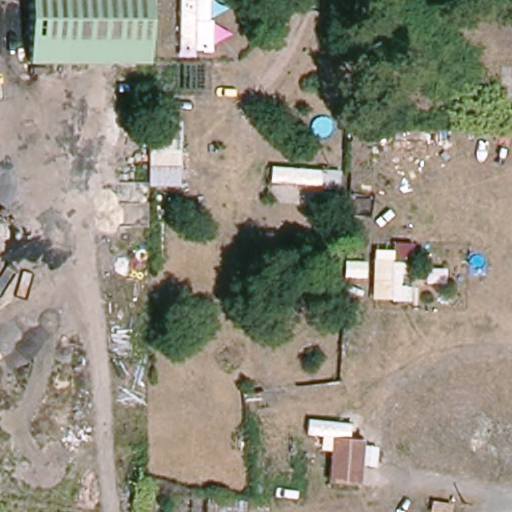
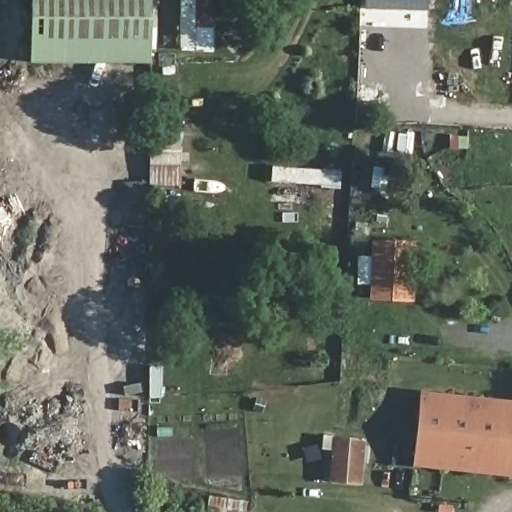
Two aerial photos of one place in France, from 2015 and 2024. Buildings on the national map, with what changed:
unchanged [(27,0),(150,0),(149,62),(25,63),(27,0)]
new [(214,52),(179,52),(180,0),(213,0),(214,52)]
new [(427,11),(365,9),(365,0),(427,0),(427,11)]
unchanged [(147,186),(148,126),(181,122),(178,185),(147,186)]
unchanged [(409,300),(368,298),(371,257),(412,262),(409,300)]
new [(413,467),(422,390),(512,400),(512,477),(413,467)]
demolished [(475,472),(411,467),(412,447),(394,447),(396,402),(479,407),(475,472)]
unchanged [(325,434),(362,435),(360,486),(325,484),(325,434)]

